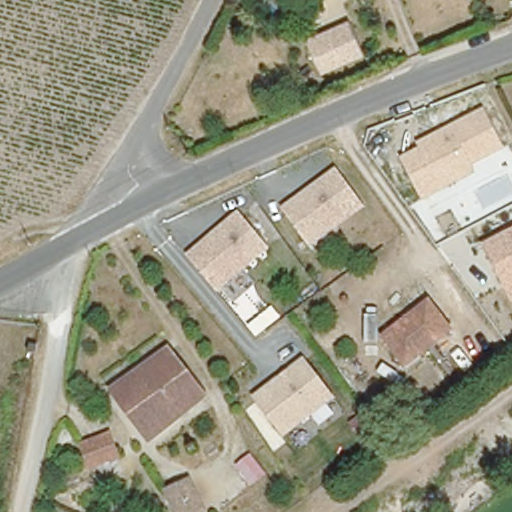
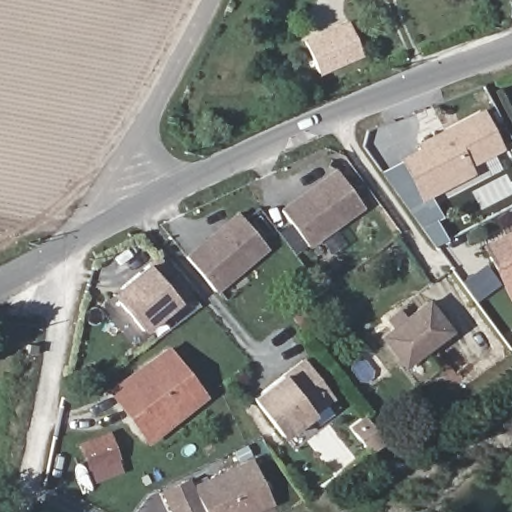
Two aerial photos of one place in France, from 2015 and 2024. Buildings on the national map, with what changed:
unchanged [(351,24),(364,54),(321,72),(308,42),(351,24)]
unchanged [(418,149),(416,144),(483,109),(505,149),(472,167),(475,176),(422,202),(401,157),(418,149)]
unchanged [(336,169),(365,209),(312,249),(281,208),(336,169)]
unchanged [(187,255),(239,210),(270,247),(218,294),(187,255)]
unchanged [(512,301),(481,244),(512,229),(512,301)]
new [(191,292),(145,330),(118,298),(120,286),(157,255),(191,292)]
unchanged [(384,337),(429,302),(450,331),(406,365),(384,337)]
unchanged [(129,378),(168,348),(205,397),(149,441),(133,420),(112,392),(129,378)]
unchanged [(304,357),(336,397),(328,405),(334,413),(319,425),(312,416),(283,438),(251,397),(304,357)]
unchanged [(110,433),(119,457),(90,468),(81,444),(110,433)]
new [(252,458),(274,503),(256,512),(206,512),(193,486),(252,458)]
unchanged [(206,512),(174,512),(164,491),(190,480),(206,512)]

